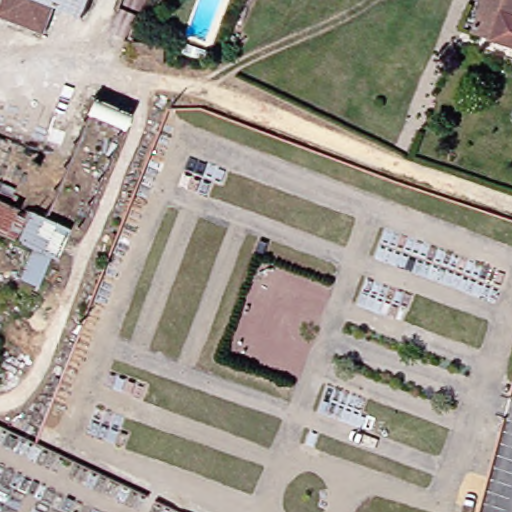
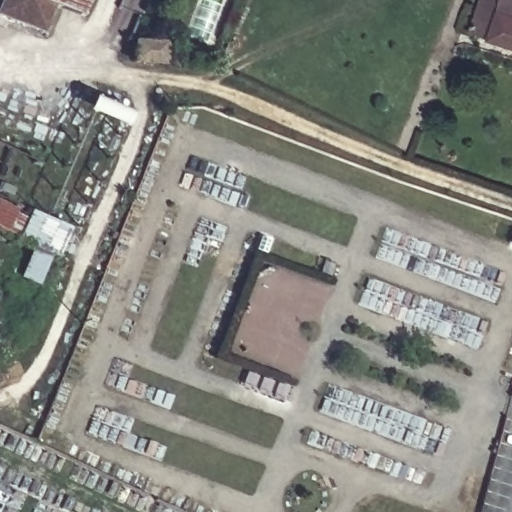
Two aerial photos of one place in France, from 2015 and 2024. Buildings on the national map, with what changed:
unchanged [(59,8),(48,35),(2,17),(9,0),(66,0),(89,19),(59,8)]
unchanged [(66,0),(96,0),(89,19),(66,0)]
unchanged [(494,37),(476,31),(487,0),(512,0),(512,46),(494,40),(494,37)]
unchanged [(172,46),(171,66),(141,64),(143,44),(172,46)]
unchanged [(21,242),(16,252),(0,245),(0,198),(34,214),(21,242)]
unchanged [(34,214),(73,229),(62,259),(54,257),(43,287),(25,279),(38,249),(21,242),(34,214)]
unchanged [(236,369),(228,367),(232,357),(240,361),(236,369)]

